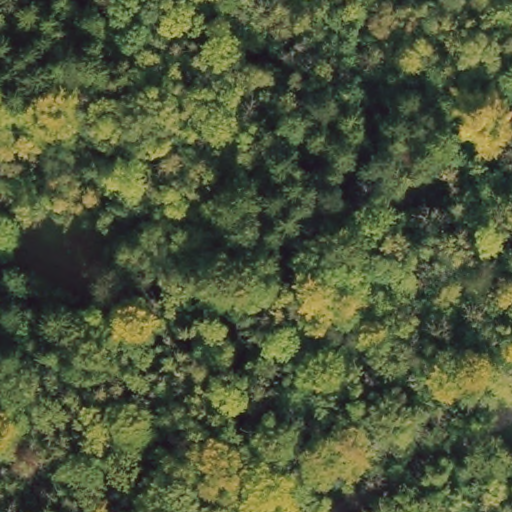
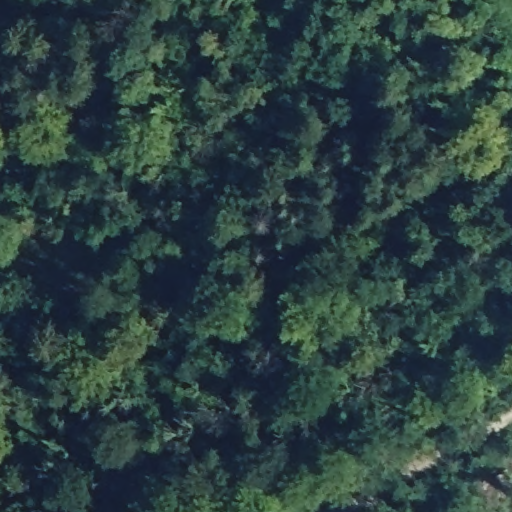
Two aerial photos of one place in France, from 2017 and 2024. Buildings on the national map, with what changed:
[]

